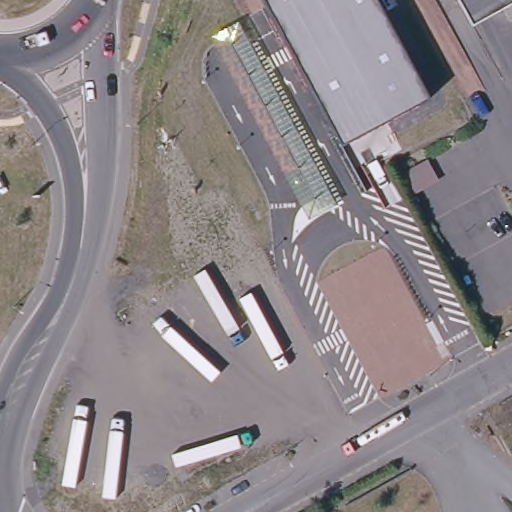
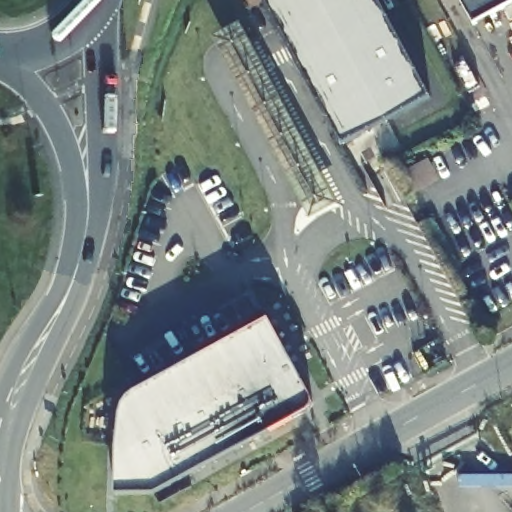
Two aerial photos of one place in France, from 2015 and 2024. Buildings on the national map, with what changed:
unchanged [(265,0),(373,0),(424,94),(339,136),(265,0)]
unchanged [(469,28),(453,0),(512,0),(512,3),(469,28)]
new [(111,457),(110,418),(111,411),(123,399),(271,315),(316,394),(316,401),(313,405),(161,494),(122,499),(111,457)]
demolished [(258,398),(198,433),(162,371),(221,337),(258,398)]

